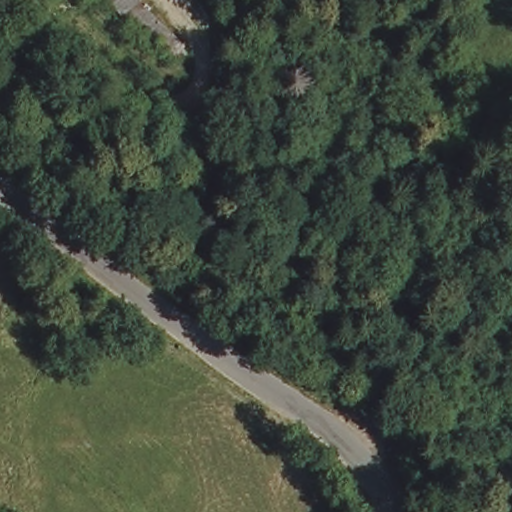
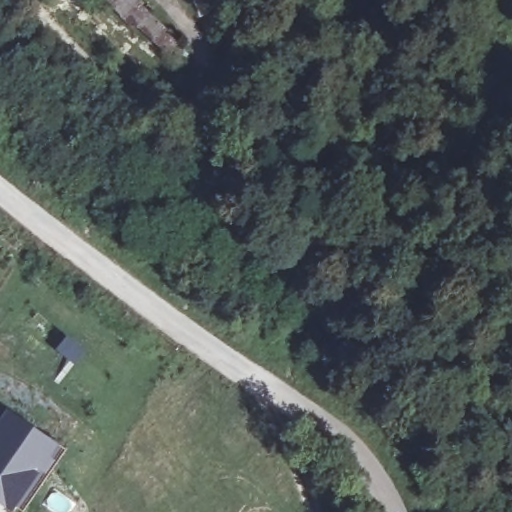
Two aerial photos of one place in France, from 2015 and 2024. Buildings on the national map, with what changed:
unchanged [(182,37),(165,56),(112,0),(146,0),(182,37)]
new [(9,412),(65,447),(25,511),(14,503),(45,452),(2,424),(9,412)]
new [(2,424),(45,452),(14,503),(0,495),(0,426),(2,424)]

